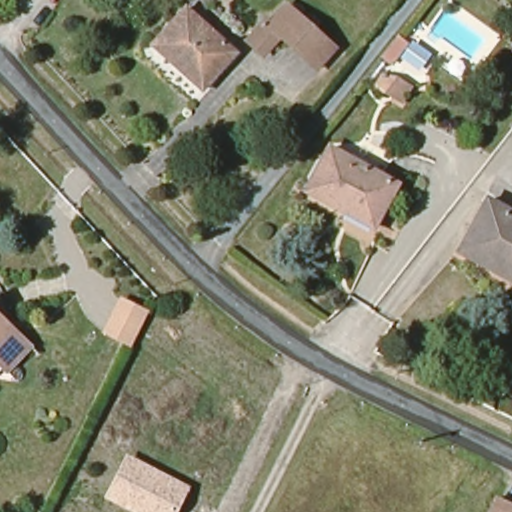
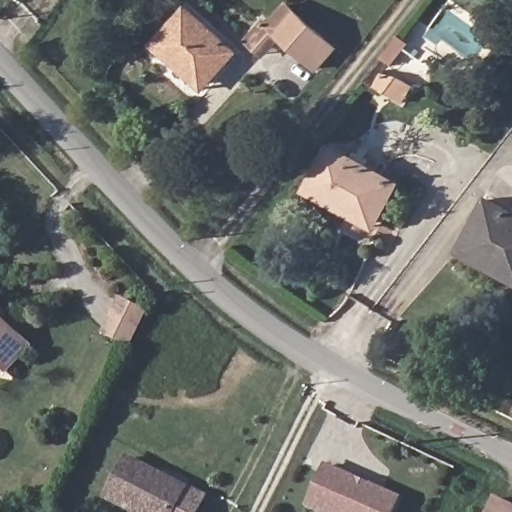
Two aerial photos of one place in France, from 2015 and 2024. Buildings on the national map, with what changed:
unchanged [(166,64),(150,49),(186,11),(235,56),(207,87),(200,95),(166,64)]
unchanged [(288,15),(334,56),(316,76),(280,44),(264,61),(249,48),(264,30),(270,35),(288,15)]
unchanged [(408,42),(391,62),(381,55),(398,33),(408,42)]
unchanged [(376,85),(384,72),(390,75),(392,72),(408,82),(400,97),(376,85)]
unchanged [(340,208),(306,190),(329,148),(348,158),(352,151),(367,157),(363,166),(395,181),(375,219),(371,225),(340,208)]
unchanged [(453,260),(482,208),(512,222),(512,291),(485,277),(453,260)]
unchanged [(130,348),(101,335),(119,297),(149,311),(130,348)]
unchanged [(6,372),(0,366),(0,305),(10,315),(5,323),(30,350),(6,372)]
unchanged [(177,512),(129,512),(103,498),(125,453),(190,487),(177,512)]
new [(395,512),(317,512),(306,507),(326,462),(402,495),(395,512)]
unchanged [(512,507),(512,512),(494,512),(499,501),(512,507)]

